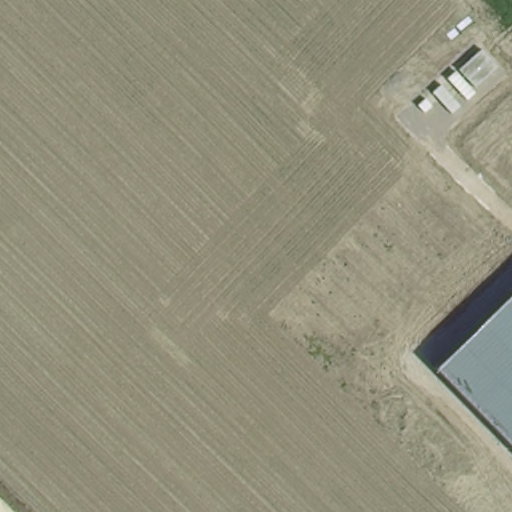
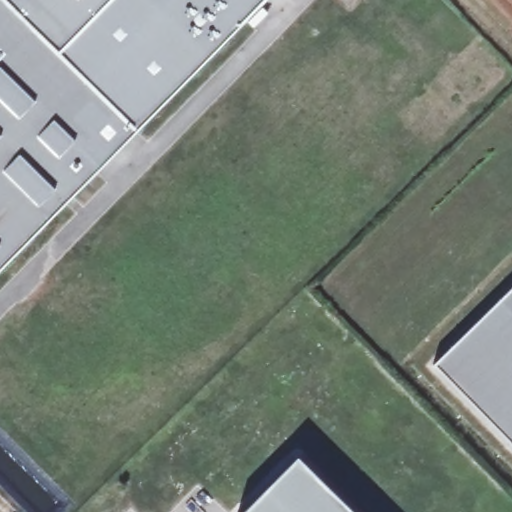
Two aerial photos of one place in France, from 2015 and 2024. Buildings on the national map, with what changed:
new [(0,0),(267,0),(0,271),(0,0)]
unchanged [(512,288),(512,449),(432,367),(512,288)]
new [(296,458),(352,512),(244,512),(296,458)]

